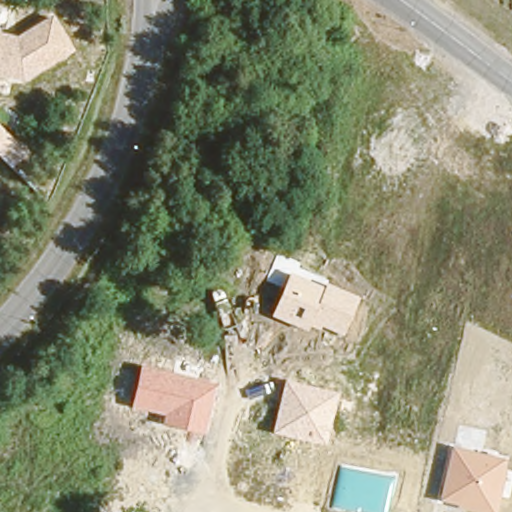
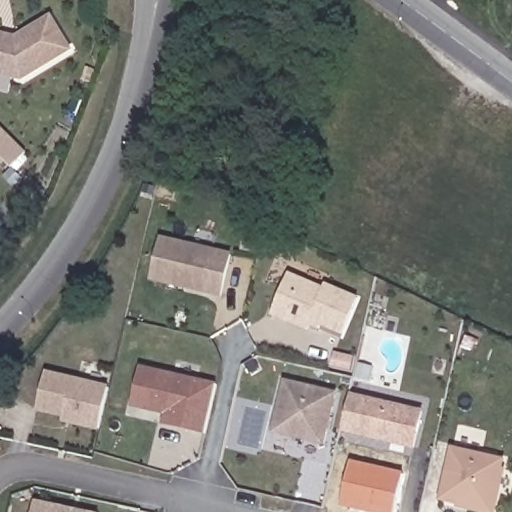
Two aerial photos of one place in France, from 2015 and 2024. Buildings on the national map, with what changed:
unchanged [(17,36),(55,14),(75,50),(24,81),(0,75),(0,32),(17,36)]
unchanged [(28,154),(13,169),(0,156),(0,126),(28,154)]
new [(151,279),(161,237),(234,255),(224,297),(151,279)]
unchanged [(320,330),(309,326),(307,331),(271,315),(290,273),(325,288),(327,283),(358,297),(343,335),(322,326),(320,330)]
unchanged [(206,434),(164,424),(165,415),(131,407),(141,366),(218,384),(206,434)]
new [(63,422),(64,418),(36,412),(46,369),(110,385),(99,431),(63,422)]
unchanged [(325,445),(272,433),(285,380),(339,393),(325,445)]
new [(343,431),(351,393),(425,411),(415,449),(343,431)]
unchanged [(451,447),(505,460),(503,468),(506,469),(497,512),(475,512),(457,508),(458,504),(440,501),(451,447)]
new [(403,472),(395,512),(366,512),(342,507),(352,461),(403,472)]
new [(88,512),(33,512),(35,501),(88,512)]

